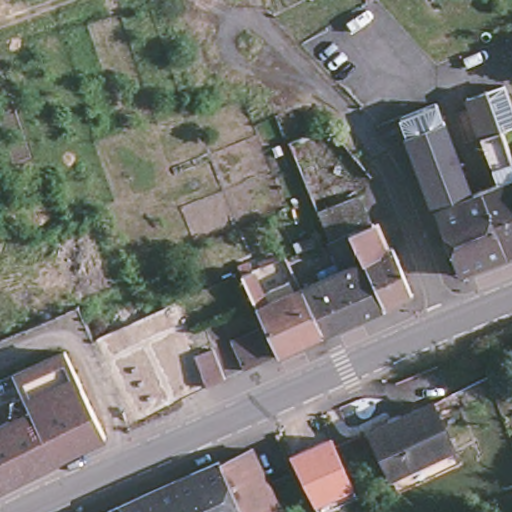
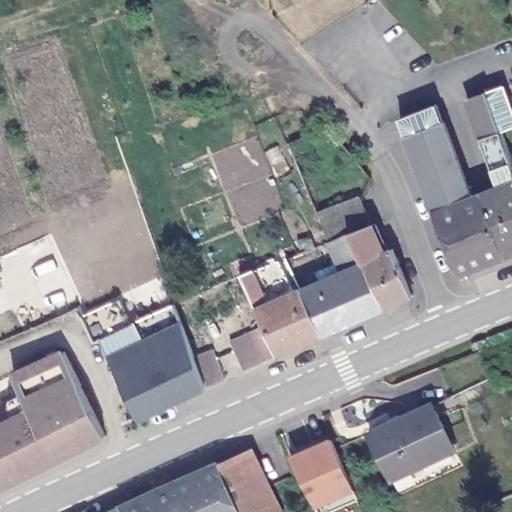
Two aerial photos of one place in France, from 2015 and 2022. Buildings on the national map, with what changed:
unchanged [(475,126),(475,125),(467,105),(488,97),(488,98),(505,92),(512,110),(512,132),(500,136),(501,137),(508,157),(512,168),(512,186),(499,191),(475,126)]
unchanged [(408,141),(401,123),(437,111),(443,128),(445,127),(459,166),(422,179),(407,141),(408,141)]
unchanged [(473,202),(436,217),(422,179),(459,166),(473,202)]
unchanged [(481,198),(499,191),(512,186),(512,261),(506,263),(481,198)]
unchanged [(506,263),(460,281),(436,217),(473,202),(481,198),(506,263)]
unchanged [(303,295),(364,267),(357,252),(350,238),(329,247),(318,219),(361,202),(373,229),(385,257),(393,254),(412,302),(386,313),(323,340),(315,320),(303,295)]
unchanged [(249,338),(265,331),(258,315),(256,310),(250,296),(242,280),(240,273),(250,268),(253,276),(260,291),(279,283),(285,280),(294,298),(301,296),(303,295),(315,320),(323,340),(278,361),(262,367),(244,376),(231,347),(249,338)]
new [(190,357),(194,367),(202,388),(205,387),(207,391),(140,422),(107,354),(180,321),(195,356),(190,357)]
unchanged [(220,379),(220,380),(202,388),(194,367),(190,357),(210,350),(220,379)]
unchanged [(5,421),(26,410),(18,393),(9,375),(25,367),(61,352),(77,384),(76,386),(100,434),(98,437),(51,461),(2,486),(0,481),(0,423),(5,421)]
unchanged [(389,480),(367,432),(423,407),(430,405),(451,452),(441,457),(389,480)]
unchanged [(290,456),(330,437),(355,492),(316,509),(290,456)]
unchanged [(242,512),(221,465),(252,452),(279,512),(242,512)]
unchanged [(123,512),(120,508),(220,462),(221,465),(242,512),(123,512)]
unchanged [(2,486),(0,486),(0,481),(2,486)]
unchanged [(113,512),(120,508),(123,512),(113,512)]

